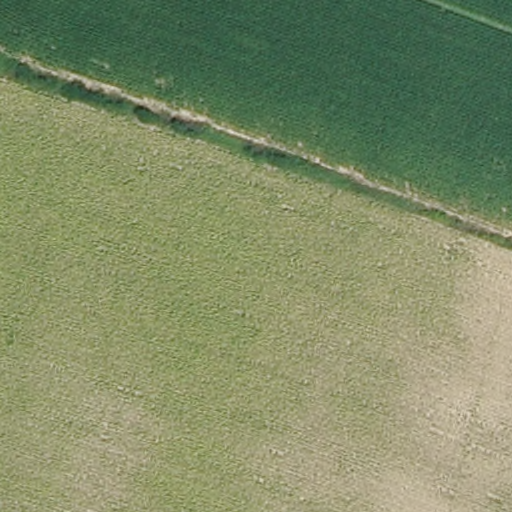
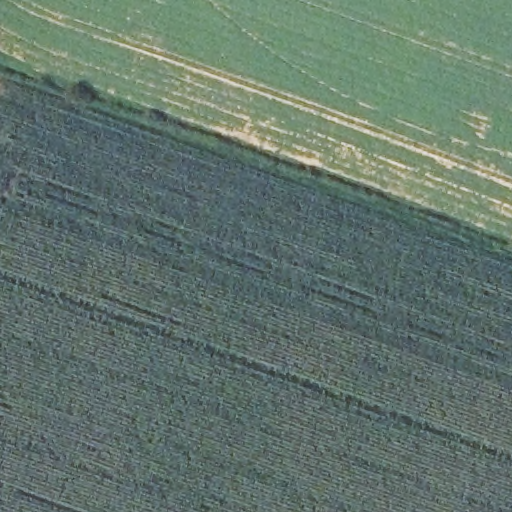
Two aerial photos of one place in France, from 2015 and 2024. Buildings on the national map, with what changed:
[]

